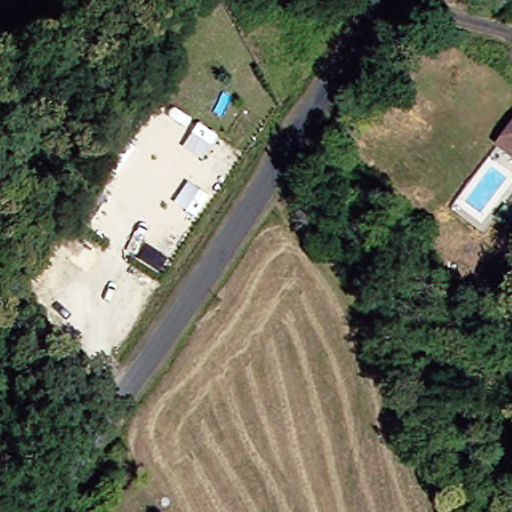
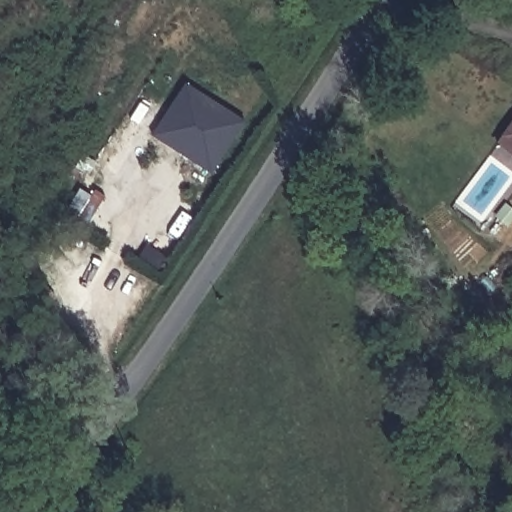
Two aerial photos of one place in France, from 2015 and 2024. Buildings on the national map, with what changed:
new [(187,84),(245,122),(212,174),(152,136),(187,84)]
unchanged [(512,130),(512,168),(493,150),(512,130)]
new [(95,191),(106,197),(89,224),(68,210),(81,189),(92,196),(95,191)]
unchanged [(507,224),(497,234),(488,225),(497,214),(507,224)]

